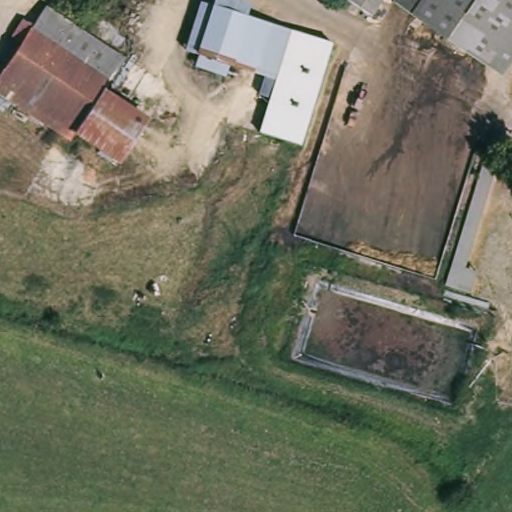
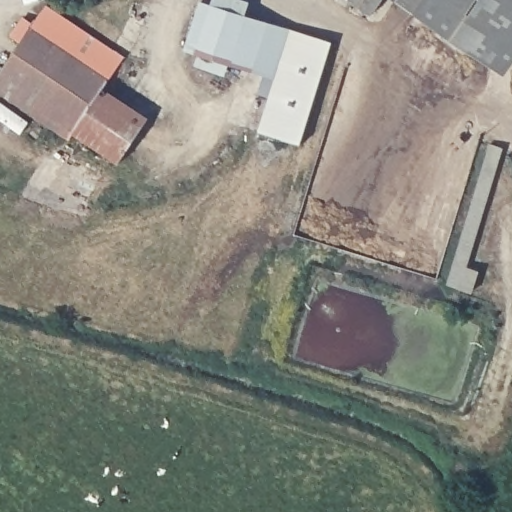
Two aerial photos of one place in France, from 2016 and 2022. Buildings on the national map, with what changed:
unchanged [(257,94),(263,76),(229,64),(224,77),(194,67),(198,55),(187,51),(200,2),(212,5),(213,0),(241,0),(250,3),(248,12),(296,29),(272,100),(257,94)]
unchanged [(383,16),(372,14),(350,0),(396,0),(383,16)]
unchanged [(429,21),(397,0),(439,0),(429,21)]
unchanged [(429,21),(439,0),(512,0),(512,75),(429,21)]
unchanged [(126,57),(104,94),(77,137),(72,144),(0,92),(0,77),(23,43),(11,35),(25,12),(37,20),(49,4),(127,56),(126,57)]
unchanged [(305,149),(260,132),(296,29),(342,43),(305,149)]
unchanged [(121,164),(119,168),(77,137),(104,94),(146,124),(121,164)]

